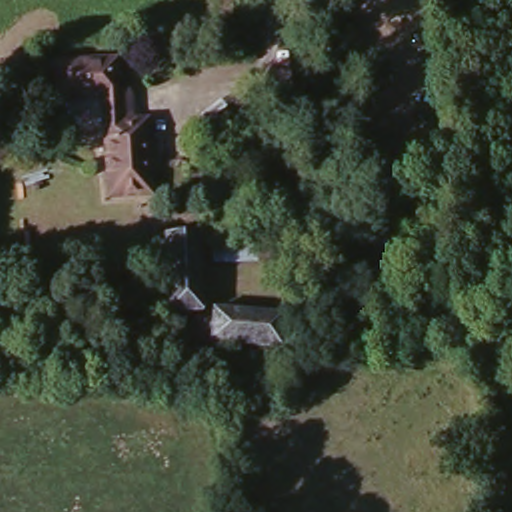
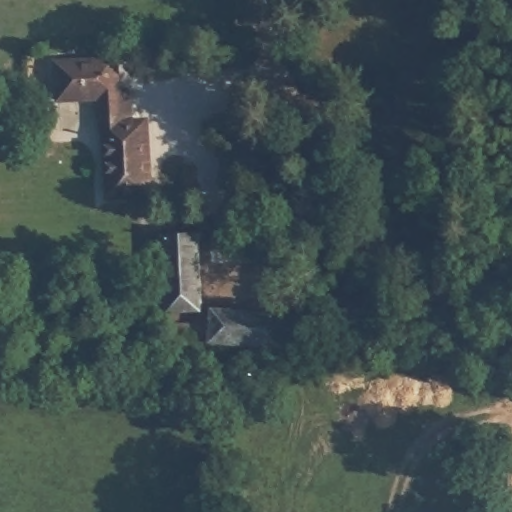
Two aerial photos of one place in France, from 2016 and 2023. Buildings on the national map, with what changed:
unchanged [(98,101),(54,101),(53,69),(113,65),(113,94),(124,99),(126,127),(141,125),(144,181),(145,200),(101,200),(99,129),(98,101)]
unchanged [(272,226),(269,250),(221,246),(221,225),(272,226)]
unchanged [(194,236),(197,310),(166,313),(160,237),(194,236)]
unchanged [(191,343),(194,320),(206,321),(206,310),(276,320),(273,343),(272,355),(191,343)]

